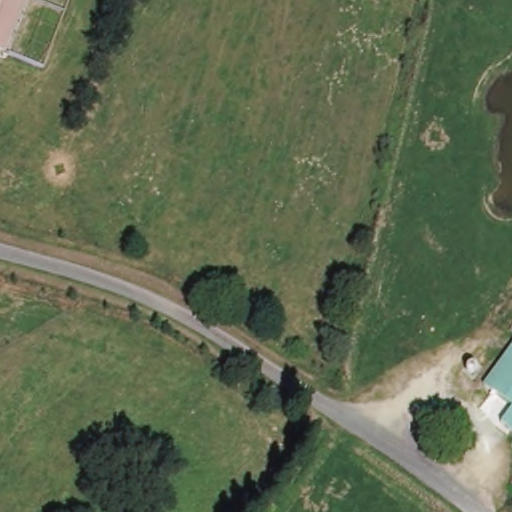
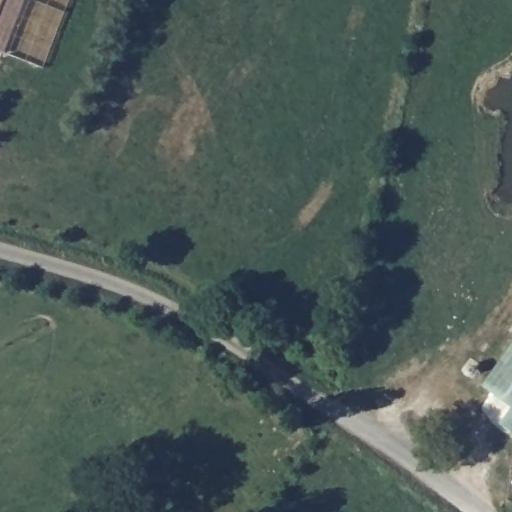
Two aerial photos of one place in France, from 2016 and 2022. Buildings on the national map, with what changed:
unchanged [(0,50),(0,0),(33,0),(15,55),(0,50)]
unchanged [(505,398),(479,377),(512,337),(512,413),(503,423),(492,414),(505,398)]

